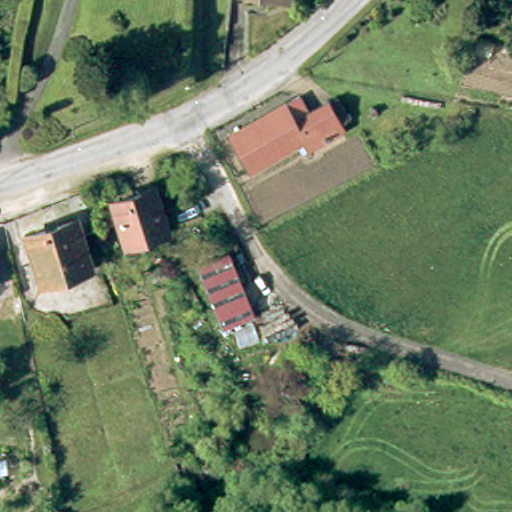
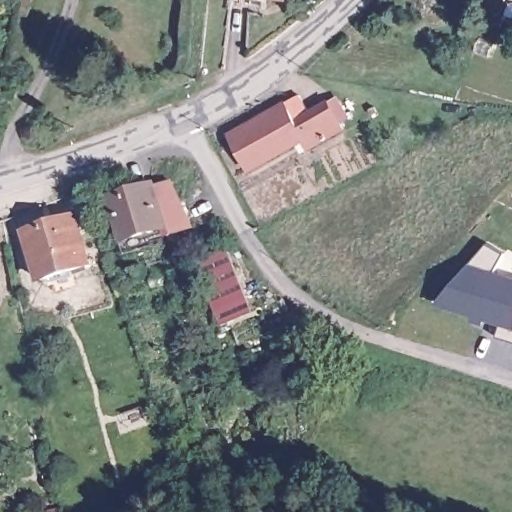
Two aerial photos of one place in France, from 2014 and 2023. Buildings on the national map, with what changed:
unchanged [(288,6),(253,0),(289,0),(288,6)]
unchanged [(232,137),(302,97),(312,115),(330,105),(332,109),(340,104),(350,120),(341,125),(345,131),(305,154),(300,145),(252,172),(232,137)]
unchanged [(160,197),(172,236),(134,249),(120,210),(160,197)]
unchanged [(82,227),(97,272),(50,289),(35,242),(82,227)]
new [(508,249),(500,271),(512,272),(512,341),(497,336),(502,322),(437,301),(488,242),(508,249)]
unchanged [(256,317),(225,330),(200,268),(231,255),(256,317)]
unchanged [(261,330),(254,332),(250,323),(259,321),(261,330)]

